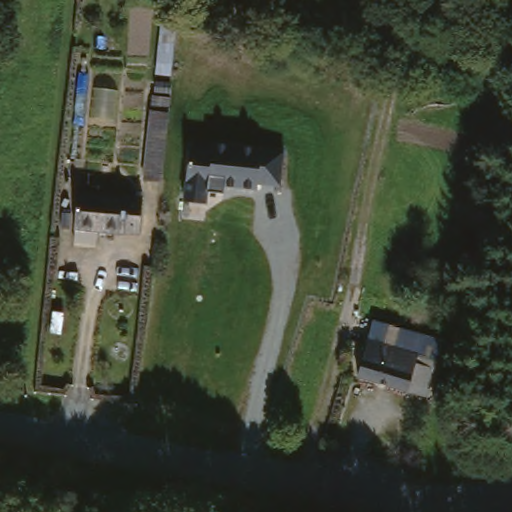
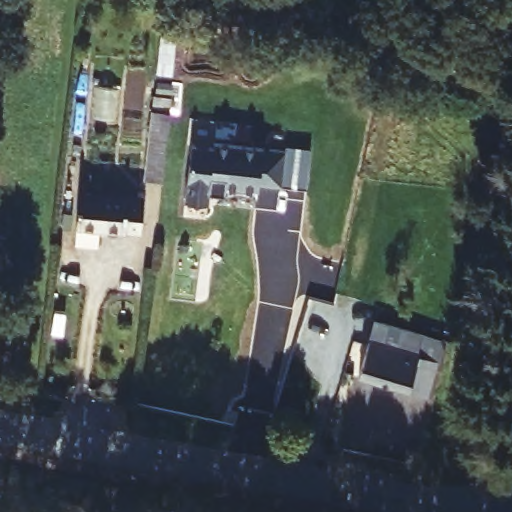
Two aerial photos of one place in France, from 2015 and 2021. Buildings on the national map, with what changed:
unchanged [(167,183),(149,181),(155,114),(156,98),(174,100),(174,101),(172,115),(167,180),(167,183)]
unchanged [(285,180),(262,177),(262,189),(231,185),(229,195),(206,192),(204,205),(186,204),(194,144),(215,147),(215,140),(263,146),(287,147),(285,180)]
unchanged [(142,199),(139,237),(70,230),(74,191),(142,199)]
unchanged [(445,341),(437,370),(431,396),(362,378),(377,323),(427,336),(445,341)]

